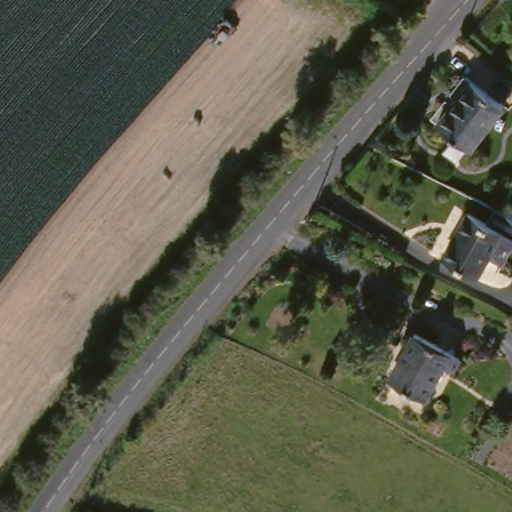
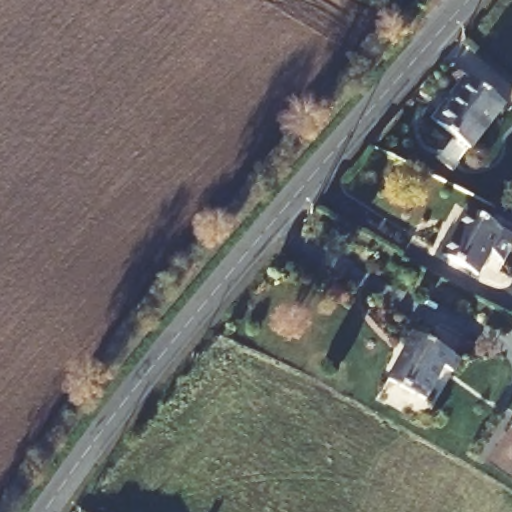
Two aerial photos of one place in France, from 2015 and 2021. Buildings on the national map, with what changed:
unchanged [(509,102),(475,146),(441,122),(476,77),(509,102)]
unchanged [(512,235),(512,250),(504,262),(491,253),(479,272),(446,253),(473,212),(505,231),(512,235)]
unchanged [(463,356),(455,371),(446,366),(427,397),(391,378),(419,332),(463,356)]

